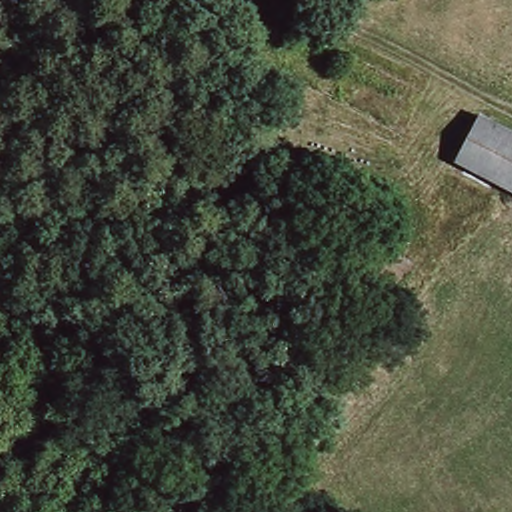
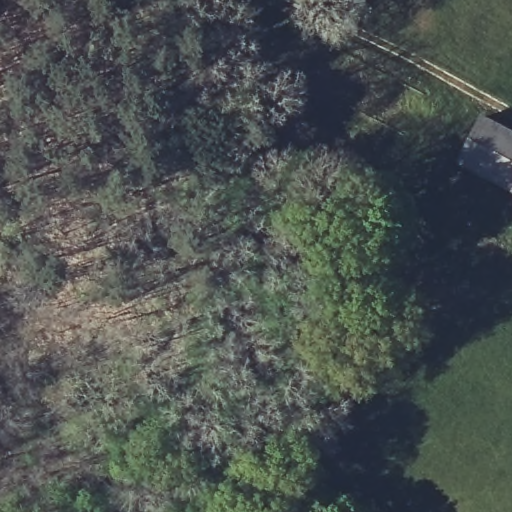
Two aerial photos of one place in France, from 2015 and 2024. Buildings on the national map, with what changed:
unchanged [(512,131),(512,188),(456,160),(480,115),(512,131)]

